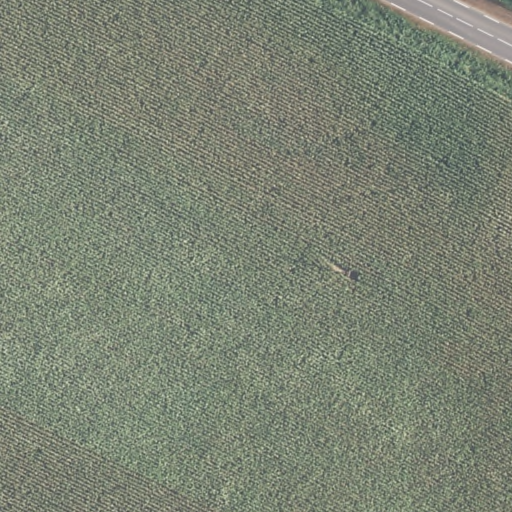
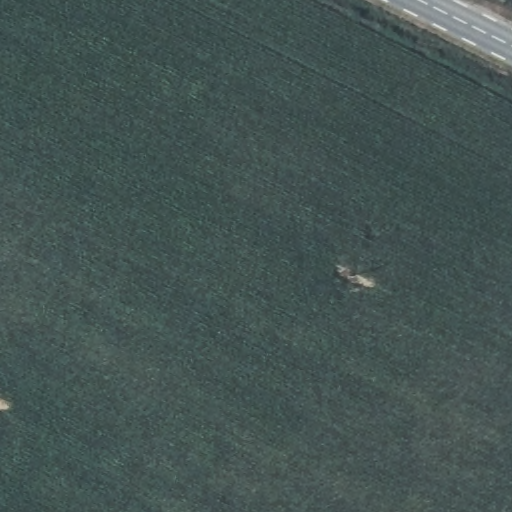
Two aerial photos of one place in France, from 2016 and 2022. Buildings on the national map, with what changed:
[]

